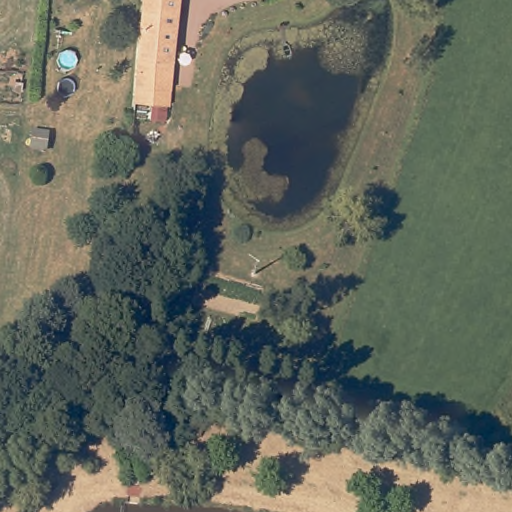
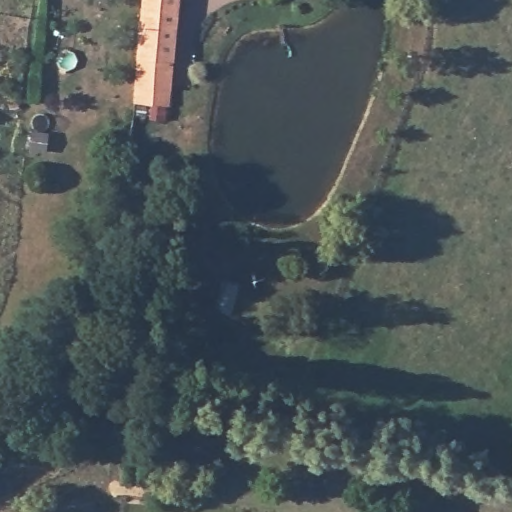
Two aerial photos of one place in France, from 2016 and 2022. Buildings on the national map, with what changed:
unchanged [(133,101),(142,0),(179,0),(168,105),(133,101)]

